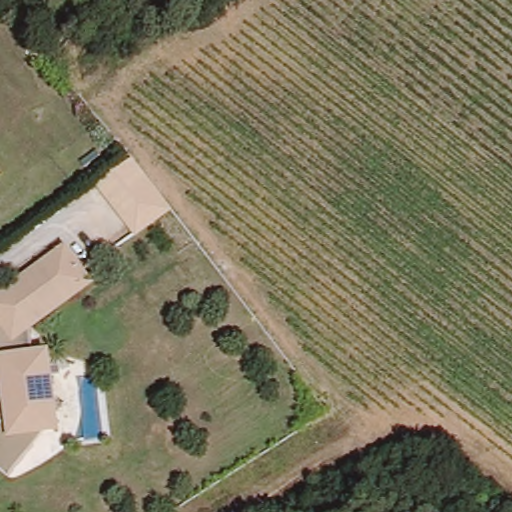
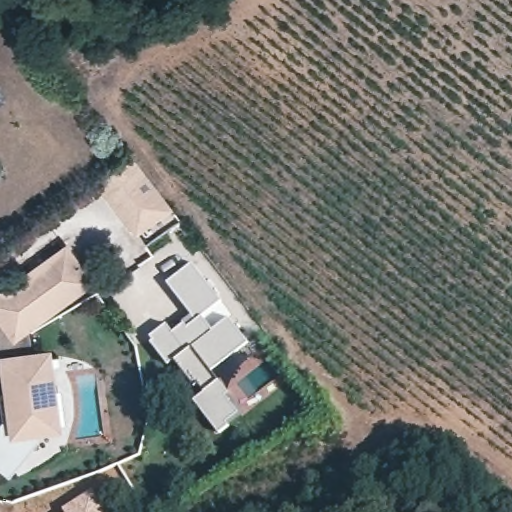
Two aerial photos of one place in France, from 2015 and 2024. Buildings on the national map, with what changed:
unchanged [(95,182),(134,155),(175,210),(136,235),(95,182)]
unchanged [(14,477),(0,465),(0,431),(8,422),(5,397),(15,395),(13,376),(0,377),(0,314),(9,313),(1,301),(74,249),(97,280),(38,322),(42,354),(54,353),(58,390),(62,427),(56,428),(41,445),(14,477)]
new [(219,432),(195,399),(207,390),(200,380),(195,383),(177,358),(168,363),(152,342),(155,340),(151,336),(167,323),(173,332),(185,323),(188,327),(197,320),(168,282),(193,263),(221,300),(202,316),(213,331),(231,318),(247,342),(211,369),(228,393),(224,396),(238,413),(226,421),(229,425),(219,432)]
new [(93,487),(108,512),(64,512),(61,507),(93,487)]

